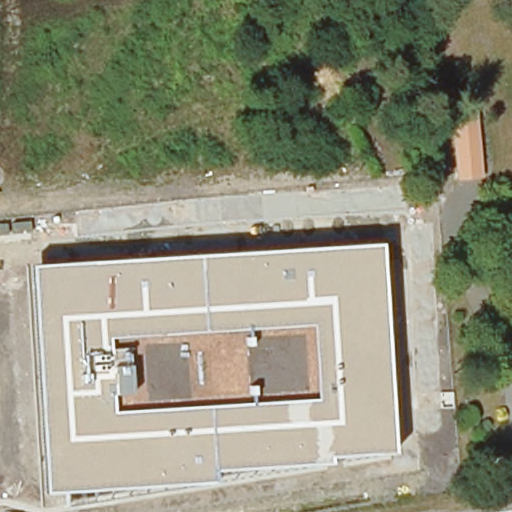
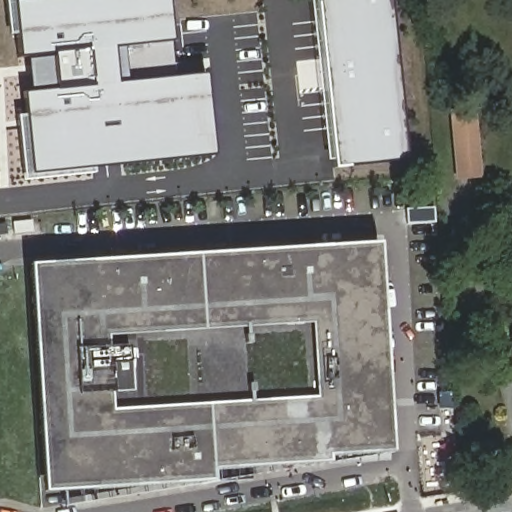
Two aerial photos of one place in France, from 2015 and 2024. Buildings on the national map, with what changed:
new [(172,41),(177,77),(205,75),(214,155),(92,167),(93,174),(21,180),(15,116),(24,115),(21,94),(29,92),(25,56),(19,57),(16,34),(7,35),(4,0),(167,0),(172,41)]
new [(407,160),(349,166),(349,168),(334,170),(319,0),(390,0),(407,160)]
unchanged [(457,181),(450,106),(479,103),(485,177),(457,181)]
unchanged [(436,120),(442,188),(422,190),(416,122),(436,120)]
unchanged [(378,242),(391,451),(327,455),(328,461),(209,468),(210,481),(43,490),(27,265),(378,242)]

